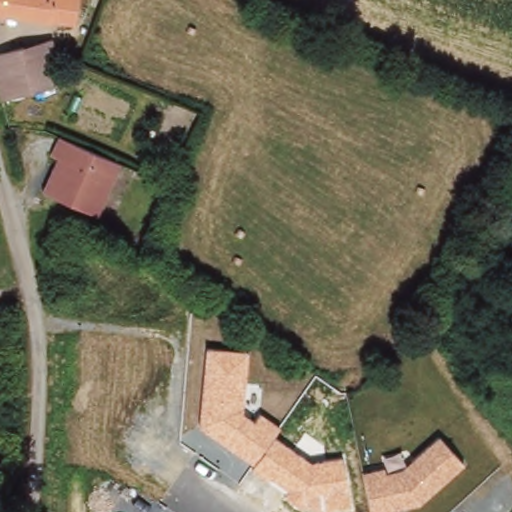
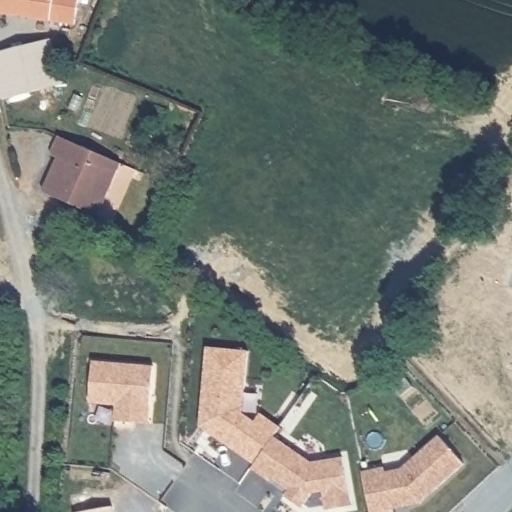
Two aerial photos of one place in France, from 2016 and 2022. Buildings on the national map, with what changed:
unchanged [(0,13),(0,0),(80,0),(79,20),(0,13)]
unchanged [(15,46),(19,81),(21,100),(0,101),(0,48),(15,46)]
unchanged [(118,160),(97,212),(41,189),(55,155),(48,151),(56,133),(118,160)]
unchanged [(247,351),(241,410),(253,418),(258,411),(281,428),(275,436),(312,463),(343,458),(351,507),(327,512),(325,512),(322,494),(312,495),(300,508),(282,496),(284,492),(250,467),(252,463),(199,425),(205,346),(247,351)]
new [(114,420),(115,405),(89,403),(93,360),(153,365),(149,423),(114,420)]
unchanged [(386,467),(387,471),(401,468),(439,432),(465,462),(418,503),(393,510),(393,512),(371,512),(362,470),(386,467)]

